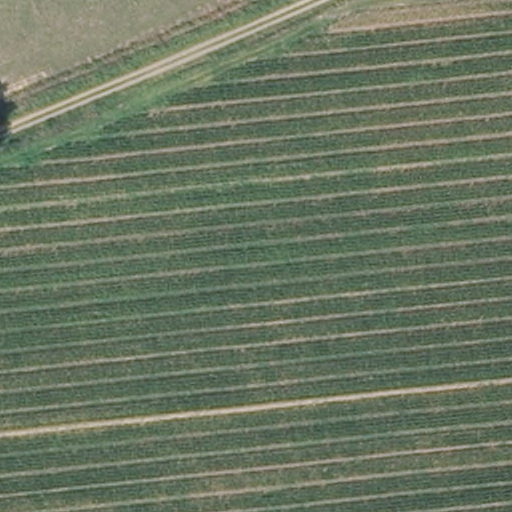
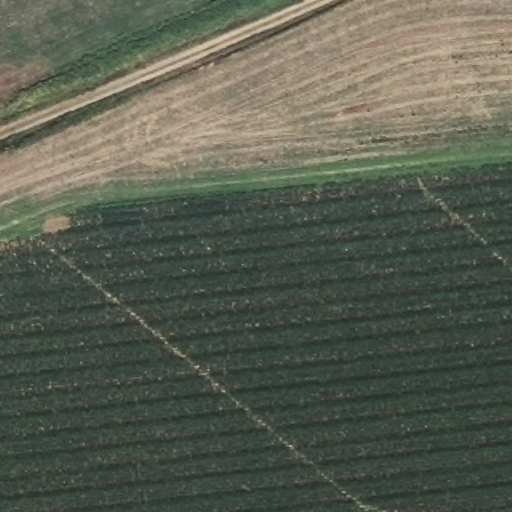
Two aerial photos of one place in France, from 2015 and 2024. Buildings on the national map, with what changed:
[]

